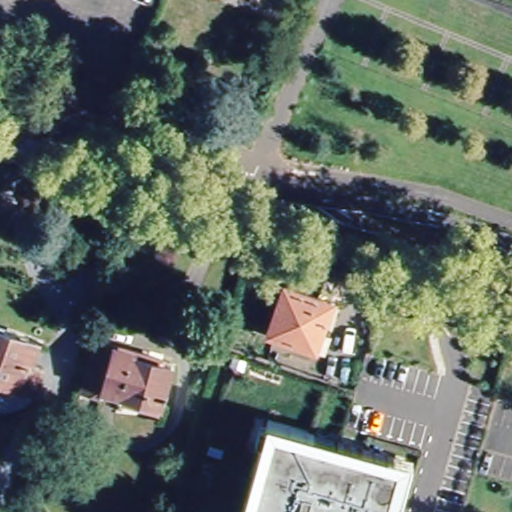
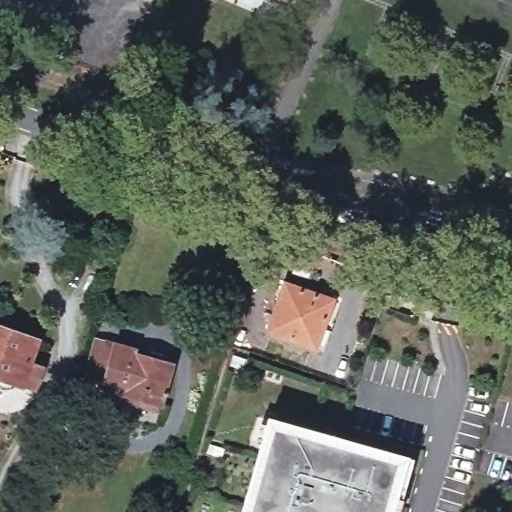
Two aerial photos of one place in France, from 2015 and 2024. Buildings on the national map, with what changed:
unchanged [(310,344),(262,327),(279,282),(334,302),(327,320),(317,347),(310,344)]
unchanged [(432,321),(422,317),(428,300),(439,303),(432,321)]
unchanged [(17,382),(15,382),(13,385),(11,387),(8,388),(5,390),(3,390),(0,390),(0,328),(31,338),(25,361),(37,365),(30,387),(17,382)]
unchanged [(160,407),(123,397),(121,402),(80,390),(96,342),(149,358),(151,354),(162,357),(160,366),(173,370),(160,407)]
unchanged [(389,449),(387,455),(412,462),(399,512),(242,512),(268,416),(389,449)]

